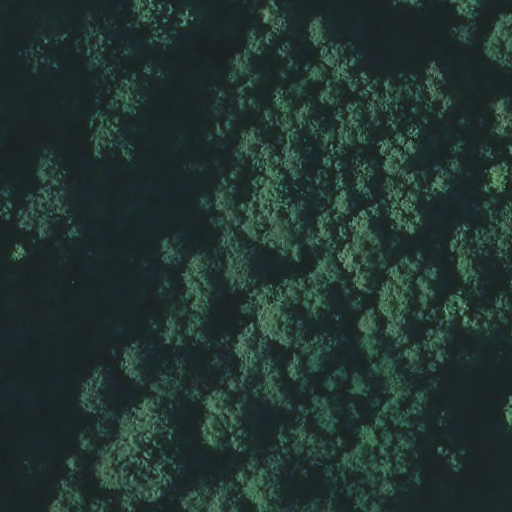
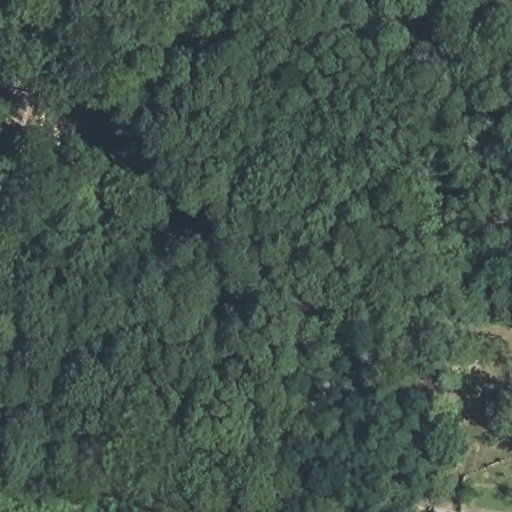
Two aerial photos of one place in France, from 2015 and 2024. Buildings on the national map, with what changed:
unchanged [(426,462),(449,464),(445,484),(423,481),(426,462)]

